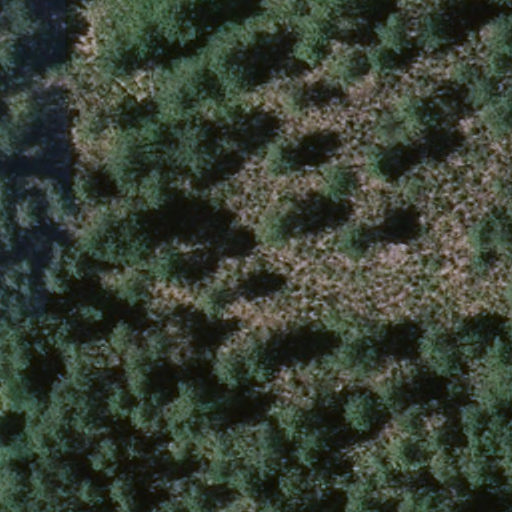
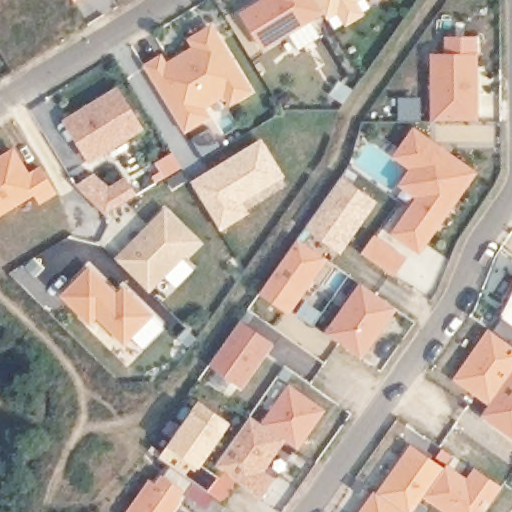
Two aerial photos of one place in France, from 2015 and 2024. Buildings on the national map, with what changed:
new [(366,16),(348,26),(339,14),(328,20),(323,13),(263,50),(240,12),(261,0),(357,0),(366,16)]
new [(228,106),(224,99),(207,108),(213,117),(184,133),(143,66),(163,54),(168,62),(192,47),(187,39),(212,24),(253,92),(228,106)]
new [(478,53),(479,121),(432,121),(431,54),(478,53)]
new [(117,85),(146,129),(89,164),(61,120),(117,85)]
new [(477,173),(419,254),(390,232),(416,197),(398,184),(409,169),(392,157),(413,127),(477,173)]
new [(260,141),(280,175),(238,201),(245,211),(219,227),(192,183),(260,141)]
new [(13,145),(29,171),(41,164),(57,192),(38,204),(32,196),(0,216),(0,153),(13,145)]
new [(111,185),(128,176),(137,195),(105,212),(76,185),(93,173),(111,185)]
new [(341,174),(378,201),(339,254),(302,228),(341,174)]
new [(200,242),(150,292),(115,257),(164,207),(200,242)]
new [(376,234),(408,256),(395,276),(360,252),(376,234)]
new [(328,260),(290,316),(259,295),(298,237),(328,260)]
new [(117,292),(124,285),(153,315),(124,346),(96,317),(89,324),(60,296),(89,265),(117,292)]
new [(363,286),(397,310),(362,359),(328,336),(363,286)]
new [(512,344),(493,331),(512,305),(512,344)]
new [(274,343),(241,387),(209,365),(241,320),(274,343)]
new [(512,344),(512,438),(480,415),(490,404),(452,379),(488,328),(493,331),(512,344)]
new [(326,411),(299,450),(285,441),(264,471),(274,479),(262,497),(215,467),(251,415),(261,422),(288,385),(326,411)]
new [(223,433),(201,465),(220,477),(211,492),(193,481),(184,492),(188,495),(174,512),(125,512),(148,478),(154,483),(162,473),(164,475),(171,465),(158,456),(168,443),(191,409),(198,399),(231,423),(223,433)]
new [(444,472),(426,497),(417,512),(403,512),(380,497),(412,450),(444,472)]
new [(447,468),(461,478),(458,482),(466,487),(476,472),(502,492),(488,512),(447,512),(426,497),(444,472),(447,468)]
new [(380,497),(403,512),(364,512),(376,494),(380,497)]

